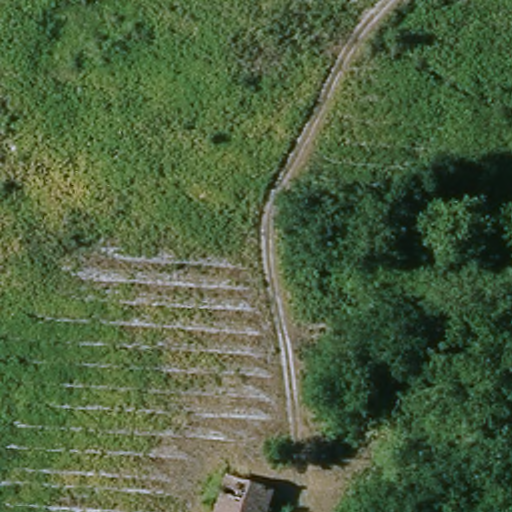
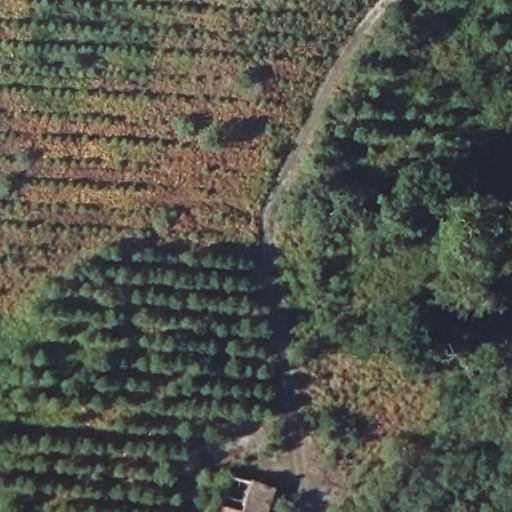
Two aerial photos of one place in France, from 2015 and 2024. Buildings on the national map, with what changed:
unchanged [(214,512),(222,474),(272,488),(268,512),(214,512)]

